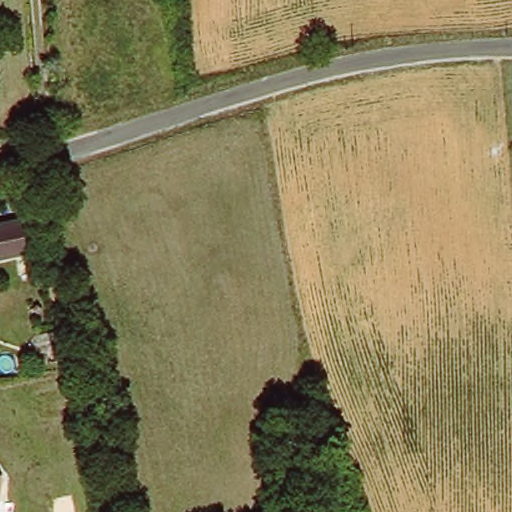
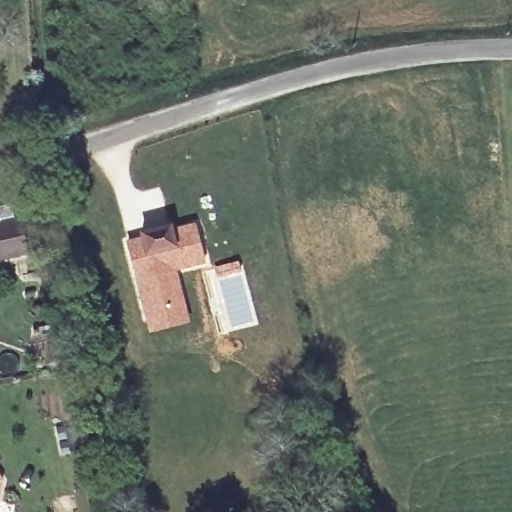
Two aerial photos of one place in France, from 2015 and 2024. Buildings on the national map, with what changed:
new [(16,216),(0,220),(0,207),(13,204),(16,216)]
unchanged [(28,256),(0,262),(0,220),(19,216),(28,256)]
new [(204,262),(174,270),(187,320),(151,330),(128,242),(141,238),(141,234),(169,226),(171,230),(196,224),(204,262)]
unchanged [(0,495),(0,474),(3,479),(0,495)]

